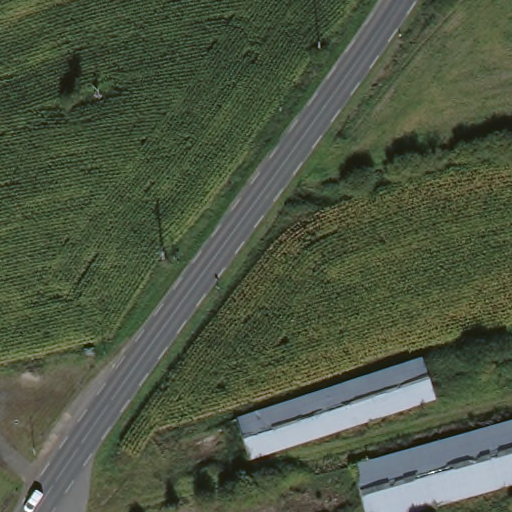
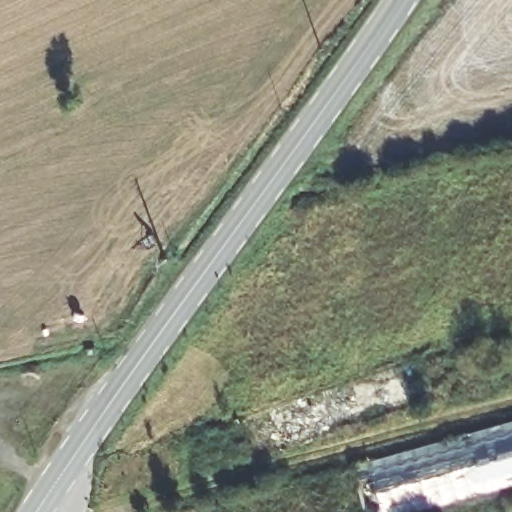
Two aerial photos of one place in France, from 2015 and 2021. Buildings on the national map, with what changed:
demolished [(247,414),(435,353),(450,395),(262,457),(247,414)]
unchanged [(512,421),(512,488),(429,512),(380,512),(362,462),(512,421)]

